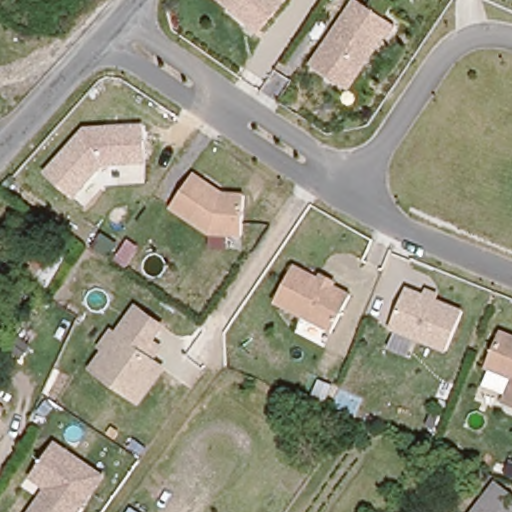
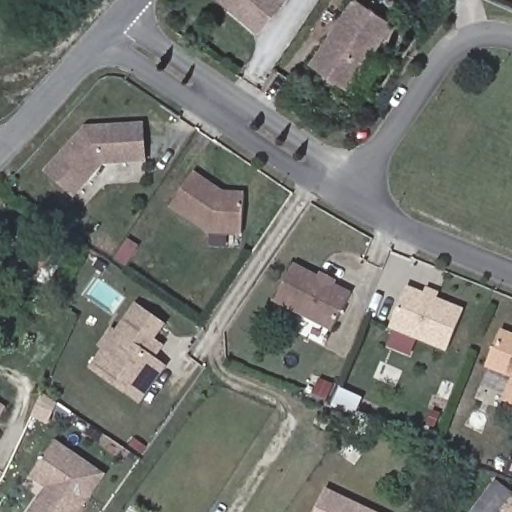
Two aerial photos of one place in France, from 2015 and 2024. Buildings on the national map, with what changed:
unchanged [(260,32),(222,0),(286,0),(260,32)]
unchanged [(354,0),(359,0),(398,27),(387,43),(382,40),(350,88),(310,66),(354,0)]
unchanged [(76,197),(46,173),(85,126),(145,122),(148,162),(105,166),(76,197)]
unchanged [(196,175),(224,192),(245,194),(244,238),(210,234),(172,210),(196,175)]
unchanged [(296,264),(353,293),(334,331),(277,302),(296,264)]
unchanged [(448,352),(417,340),(410,355),(391,348),(396,331),(391,329),(409,287),(425,293),(428,288),(441,294),(441,300),(466,310),(448,352)]
unchanged [(168,326),(159,338),(165,345),(161,358),(170,368),(142,405),(141,405),(90,369),(104,349),(99,346),(112,328),(117,331),(138,305),(168,326)]
unchanged [(512,334),(512,378),(486,369),(502,330),(512,334)]
unchanged [(512,384),(512,404),(505,402),(512,384)]
unchanged [(45,500),(52,491),(33,478),(50,454),(57,442),(105,475),(94,492),(80,512),(33,512),(42,498),(45,500)]
unchanged [(512,496),(512,501),(504,512),(478,512),(498,486),(512,496)]
new [(370,512),(316,512),(325,491),(370,512)]
unchanged [(140,512),(126,512),(131,505),(140,512)]

